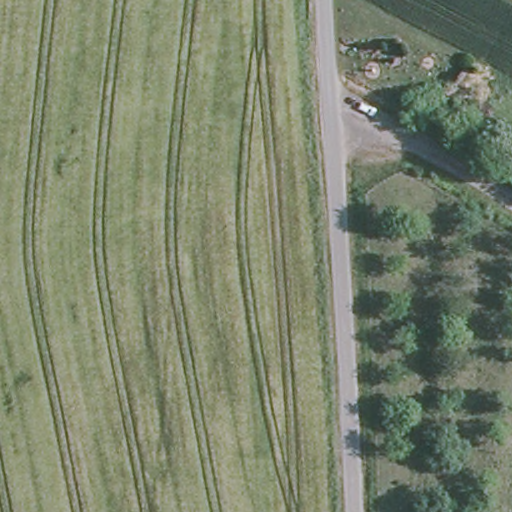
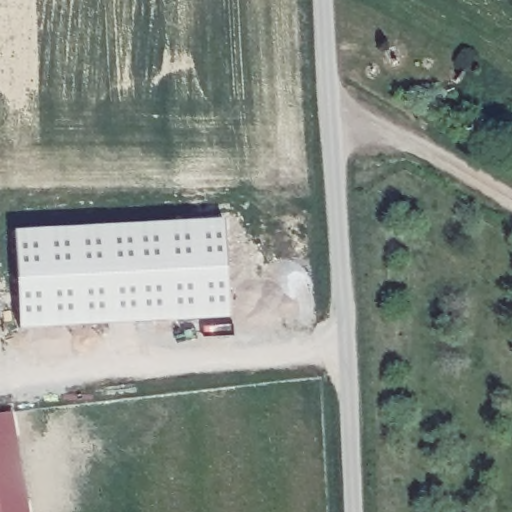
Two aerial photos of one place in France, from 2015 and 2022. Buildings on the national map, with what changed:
new [(230,318),(19,331),(13,232),(223,219),(230,318)]
new [(0,512),(0,414),(11,412),(28,512),(0,512)]

